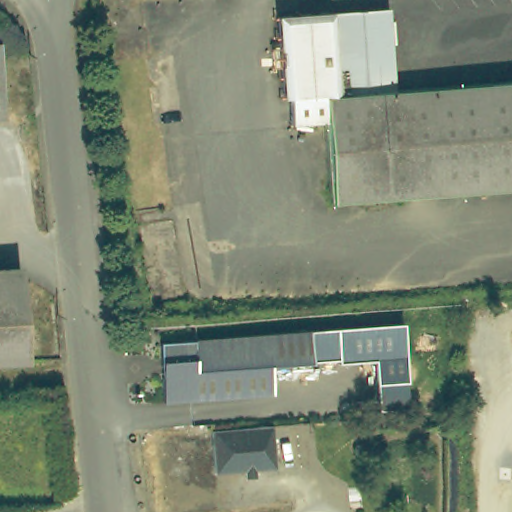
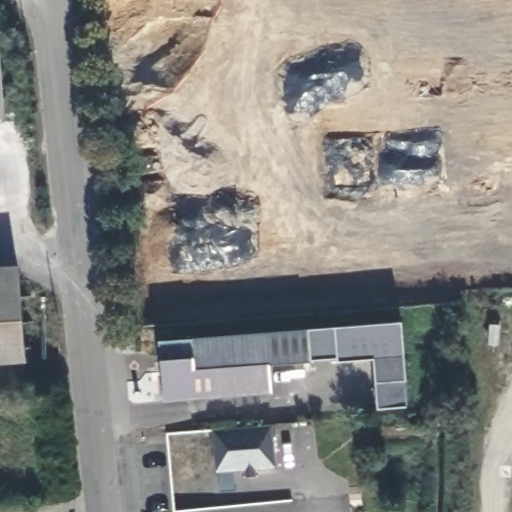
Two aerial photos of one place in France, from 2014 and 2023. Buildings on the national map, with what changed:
demolished [(512,81),(512,186),(325,200),(319,118),(286,121),(283,94),(278,94),(276,65),(284,55),(274,45),(272,15),(382,8),(388,90),(512,81)]
unchanged [(1,121),(0,121),(0,96),(1,121)]
unchanged [(26,364),(0,366),(0,281),(19,279),(26,364)]
new [(333,325),(400,321),(407,406),(377,409),(373,360),(337,363),(337,358),(305,361),(302,328),(333,325)]
unchanged [(305,361),(264,364),(265,392),(158,402),(153,340),(302,328),(305,361)]
unchanged [(241,472),(240,464),(209,467),(205,425),(265,420),(269,462),(250,464),(251,470),(241,472)]

